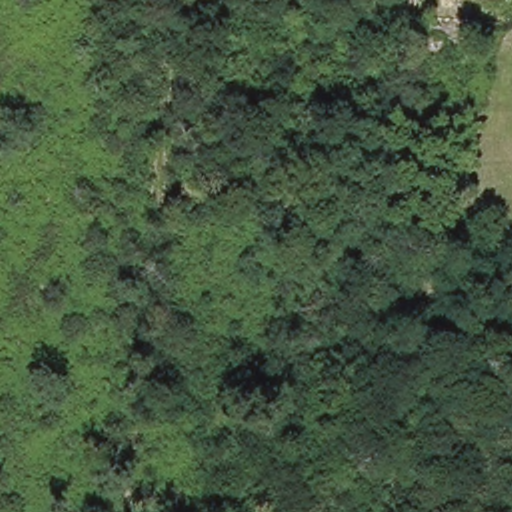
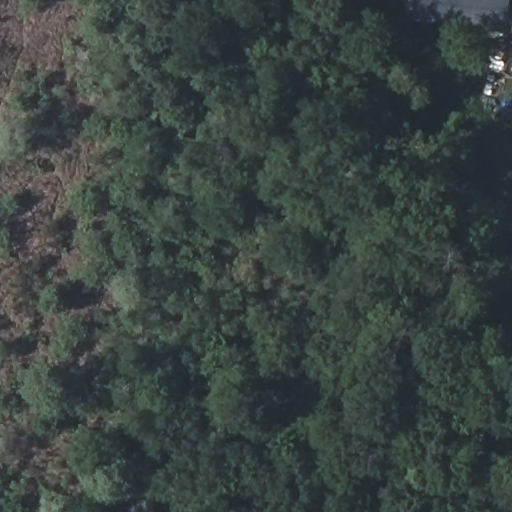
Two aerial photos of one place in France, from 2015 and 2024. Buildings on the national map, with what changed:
new [(410,19),(411,0),(512,0),(512,27),(410,19)]

